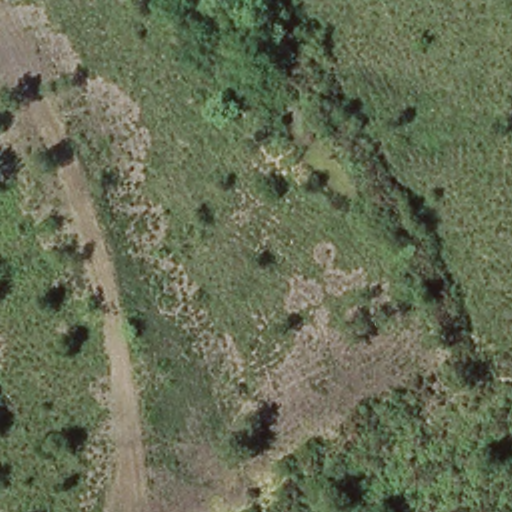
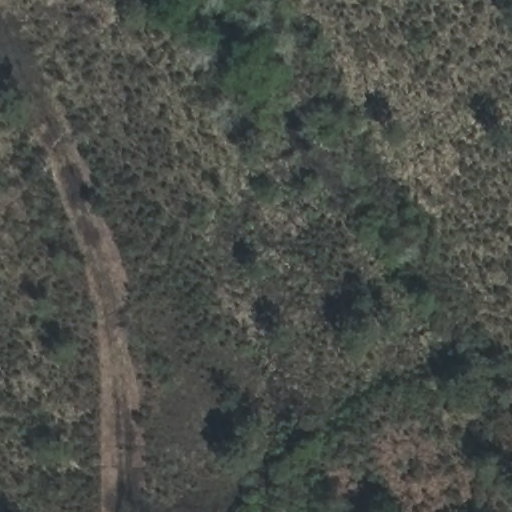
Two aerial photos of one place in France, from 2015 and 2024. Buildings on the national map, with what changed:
[]

